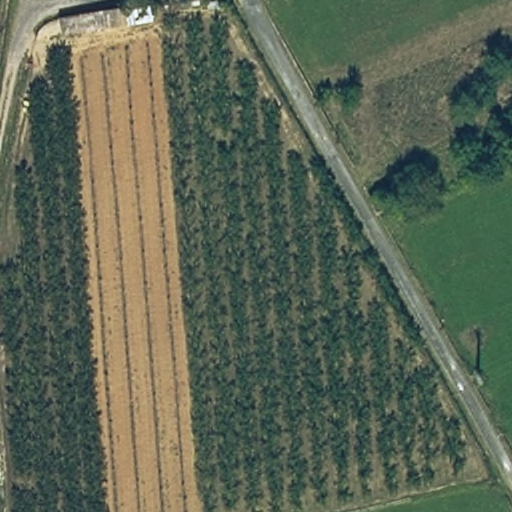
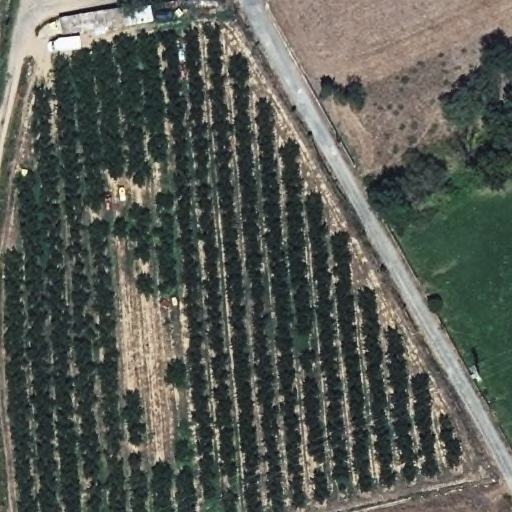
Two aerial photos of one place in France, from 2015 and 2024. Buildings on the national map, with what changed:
unchanged [(123,6),(125,22),(61,34),(58,16),(123,6)]

